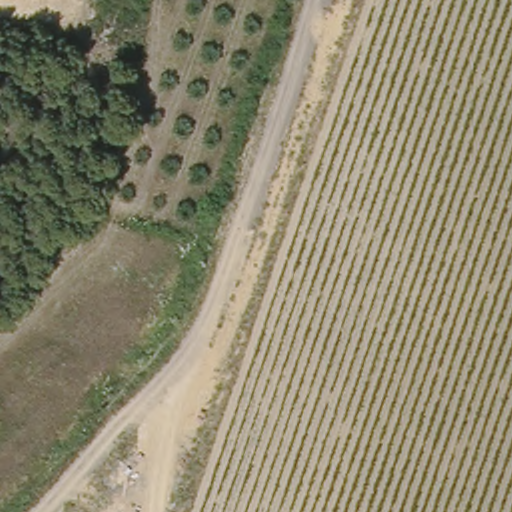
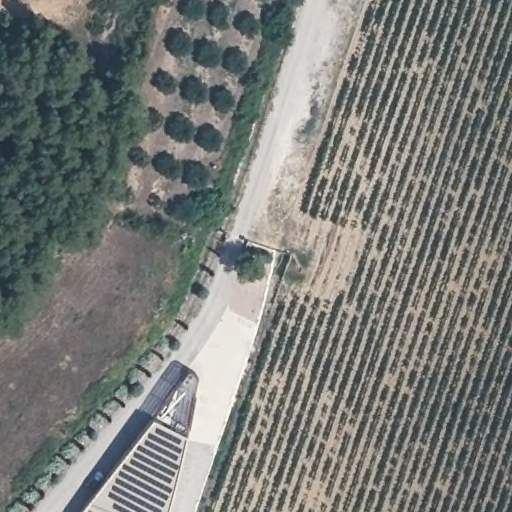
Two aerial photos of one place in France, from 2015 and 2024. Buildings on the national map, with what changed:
new [(151,420),(183,435),(165,512),(79,512),(151,420)]

